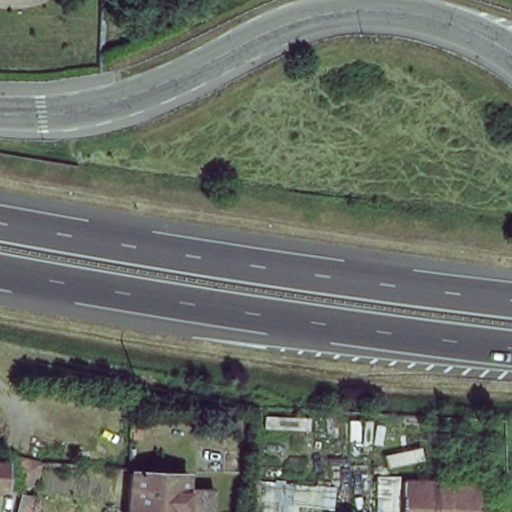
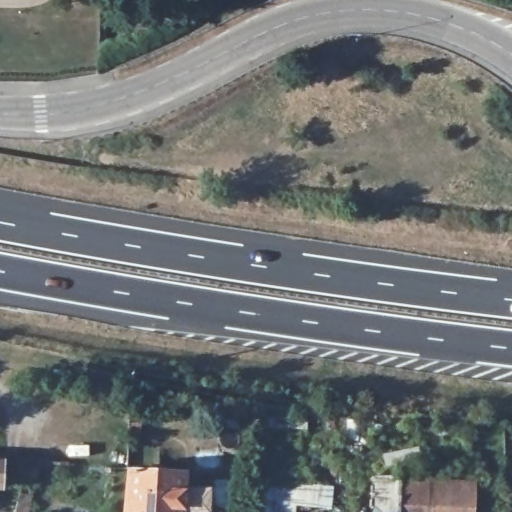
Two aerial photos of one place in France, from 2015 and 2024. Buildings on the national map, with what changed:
unchanged [(4,456),(4,465),(0,466),(0,456),(4,456)]
unchanged [(184,470),(184,489),(210,492),(208,512),(182,511),(182,512),(126,512),(131,466),(184,470)]
unchanged [(477,479),(477,512),(401,512),(400,479),(477,479)]

